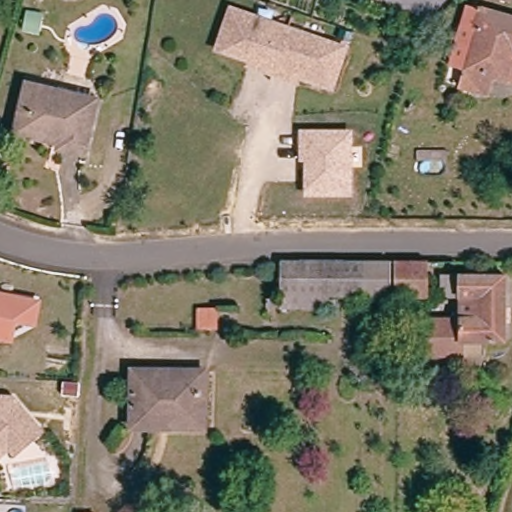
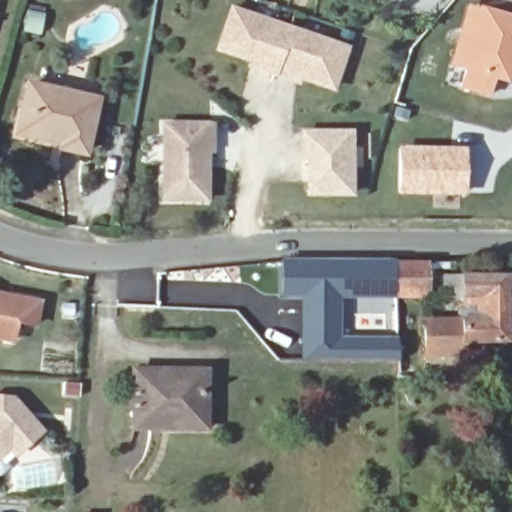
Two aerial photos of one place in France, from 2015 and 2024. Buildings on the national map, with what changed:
unchanged [(497,0),(507,0),(506,3),(497,0)]
new [(480,9),(474,29),(478,30),(466,71),(447,66),(466,4),(478,8),(479,6),(512,15),(512,18),(480,9)]
unchanged [(512,18),(512,61),(507,81),(492,76),(487,94),(462,86),(478,30),(474,29),(480,9),(512,18)]
unchanged [(37,33),(22,29),(27,11),(42,15),(37,33)]
unchanged [(290,81),(258,71),(249,68),(251,63),(219,52),(232,11),(346,51),(332,91),(300,80),(298,85),(290,81)]
new [(512,61),(512,82),(507,81),(512,61)]
unchanged [(96,101),(83,154),(59,148),(60,143),(17,132),(29,86),(96,101)]
new [(216,121),(216,153),(211,154),(210,204),(160,203),(161,121),(216,121)]
unchanged [(304,195),(304,161),(297,161),(298,129),(353,129),(353,196),(304,195)]
new [(397,145),(466,146),(466,196),(396,194),(397,145)]
unchanged [(400,262),(432,262),(432,271),(463,274),(465,275),(510,276),(510,342),(468,341),(468,354),(429,354),(428,318),(465,318),(465,295),(400,295),(332,295),(332,307),(287,306),(287,263),(400,262)]
new [(332,307),(332,295),(342,295),(340,337),(397,337),(396,361),(299,361),(299,306),(332,307)]
unchanged [(36,327),(17,323),(14,343),(0,340),(0,297),(40,304),(36,327)]
unchanged [(407,303),(422,303),(421,326),(406,326),(407,303)]
unchanged [(217,310),(216,328),(199,328),(199,310),(217,310)]
unchanged [(205,371),(204,417),(152,416),(152,427),(133,427),(133,370),(205,371)]
unchanged [(0,395),(20,397),(48,429),(22,451),(17,445),(2,457),(0,457),(0,395)]

